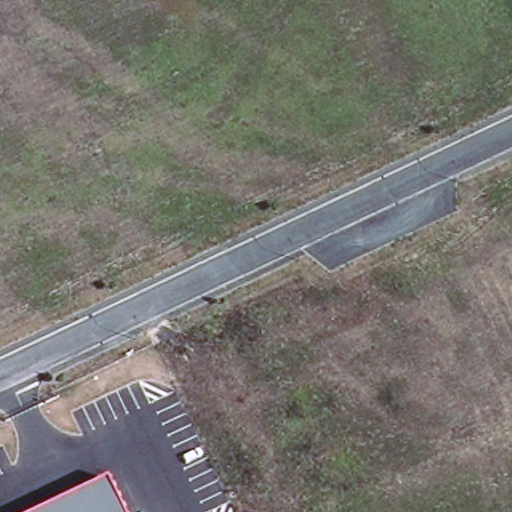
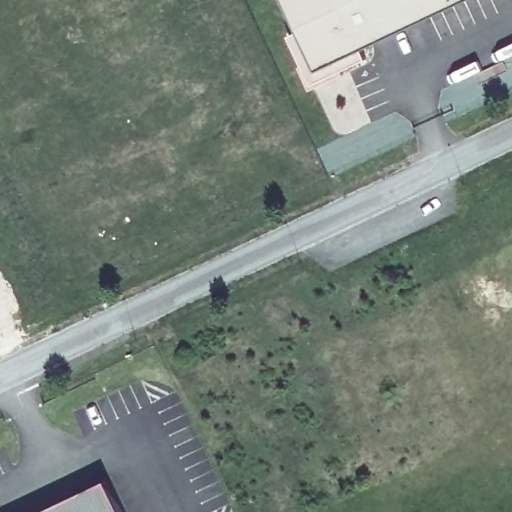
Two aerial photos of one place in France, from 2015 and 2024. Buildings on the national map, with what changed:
new [(362,50),(366,59),(311,85),(288,35),(298,31),(283,0),(468,0),(362,50)]
unchanged [(38,512),(107,478),(122,512),(38,512)]

